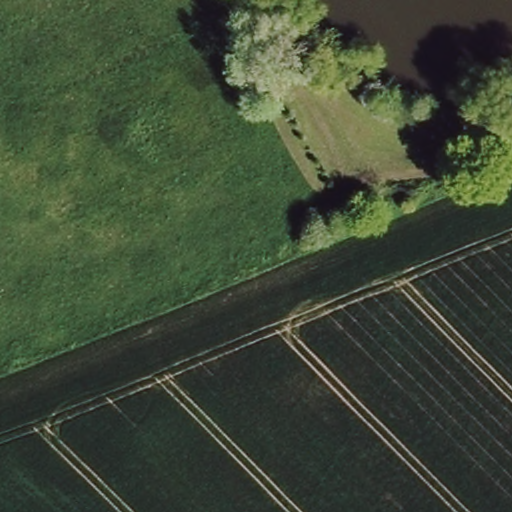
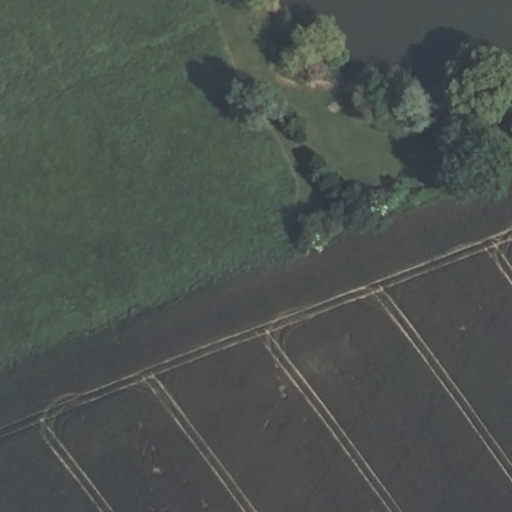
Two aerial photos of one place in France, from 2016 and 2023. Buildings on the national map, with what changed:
[]

